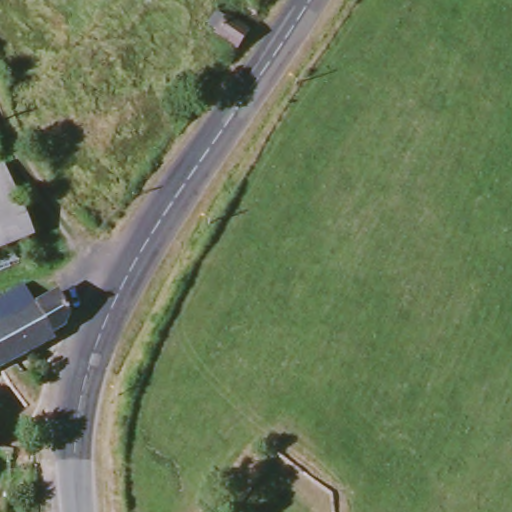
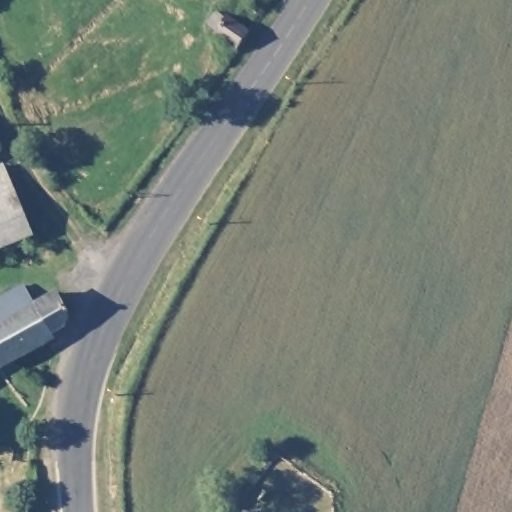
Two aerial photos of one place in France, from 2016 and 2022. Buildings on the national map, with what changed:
unchanged [(252,32),(237,51),(215,36),(217,33),(212,29),(212,25),(214,20),(218,18),(220,20),(225,21),(227,18),(252,32)]
unchanged [(14,195),(0,201),(0,163),(2,162),(14,195)]
unchanged [(0,245),(0,201),(14,195),(28,234),(0,245)]
unchanged [(55,295),(65,315),(60,327),(47,335),(50,340),(0,367),(0,298),(21,287),(32,307),(55,295)]

